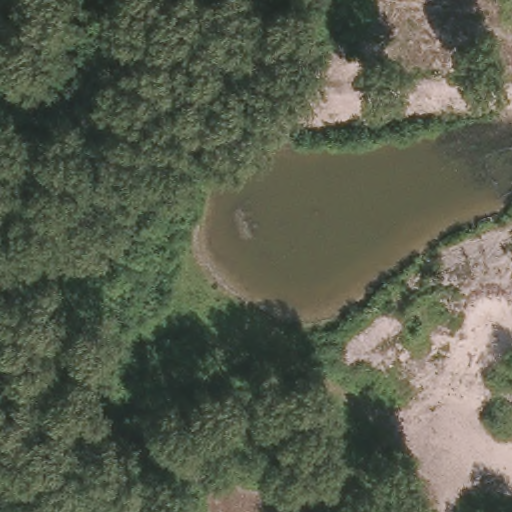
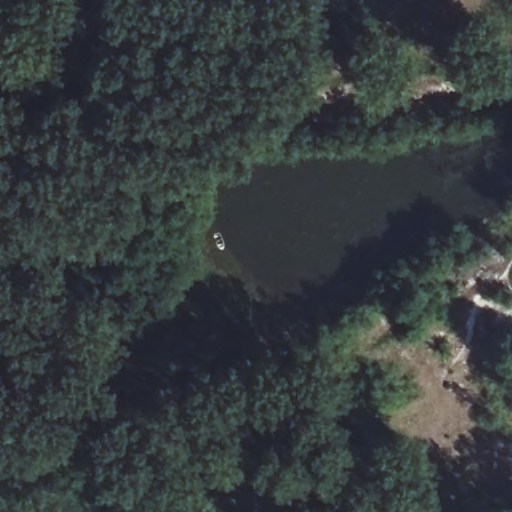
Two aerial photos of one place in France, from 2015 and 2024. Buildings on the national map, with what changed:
[]

